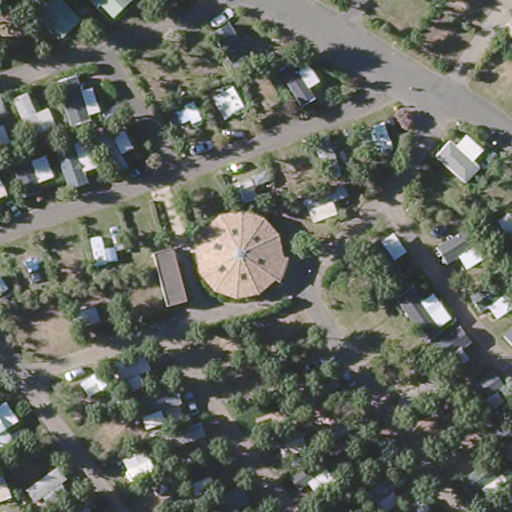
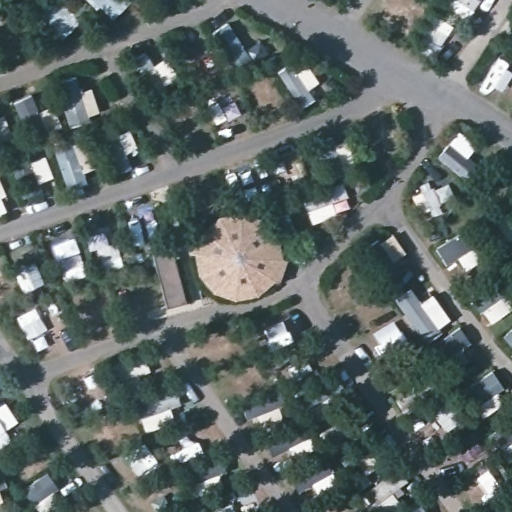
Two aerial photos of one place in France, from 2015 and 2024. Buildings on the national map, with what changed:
unchanged [(148,0),(162,0),(154,7),(148,0)]
unchanged [(302,102),(283,80),(304,62),(323,85),(302,102)]
unchanged [(259,222),(263,225),(267,228),(270,231),(271,233),(274,237),(275,240),(276,242),(277,243),(278,246),(278,249),(279,251),(279,255),(278,262),(277,267),(276,271),(274,275),(273,277),(271,280),(270,281),(268,284),(266,286),(262,289),(258,291),(255,293),(252,294),(249,295),(242,296),(238,296),(234,296),(232,295),(229,295),(225,294),(221,292),(220,291),(217,290),(215,288),(211,285),(210,284),(208,281),(206,279),(204,276),(203,274),(202,272),(201,270),(200,266),(199,263),(199,260),(199,258),(199,256),(199,254),(199,250),(200,245),(202,240),(204,237),(205,235),(208,231),(211,227),(213,226),(218,222),(220,220),(223,220),(226,219),(230,217),(234,216),(236,216),(240,216),(244,216),(247,217),(249,217),(251,219),(255,220),(258,221),(259,222)]
unchanged [(174,247),(187,301),(168,307),(154,253),(174,247)]

